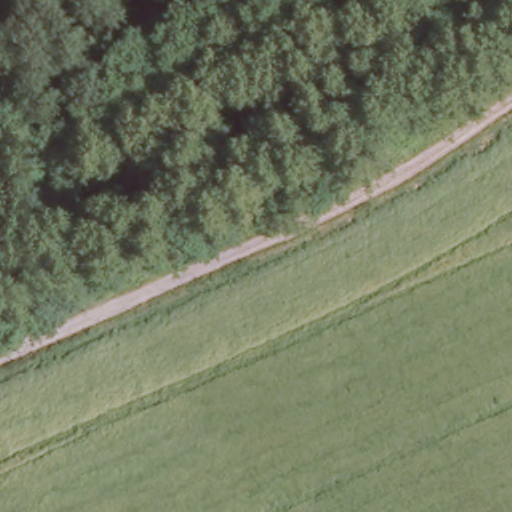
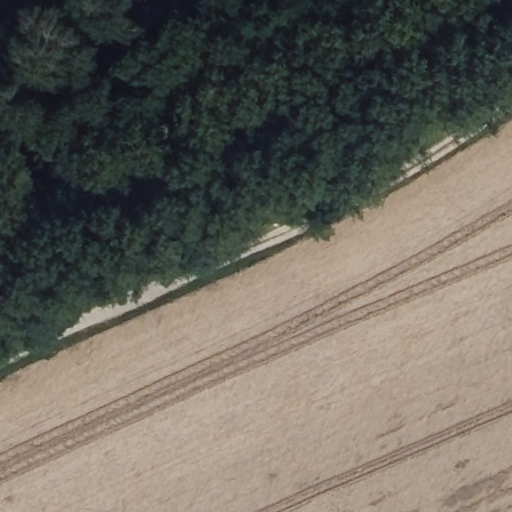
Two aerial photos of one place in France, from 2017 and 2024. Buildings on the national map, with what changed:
unchanged [(182,49),(168,54),(164,43),(177,39),(182,49)]
unchanged [(48,148),(37,151),(33,141),(45,137),(48,148)]

